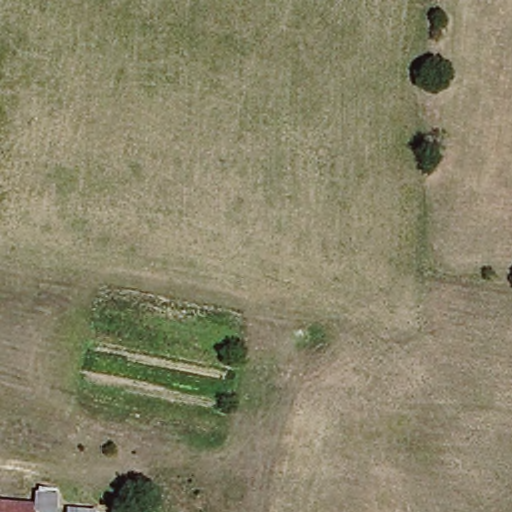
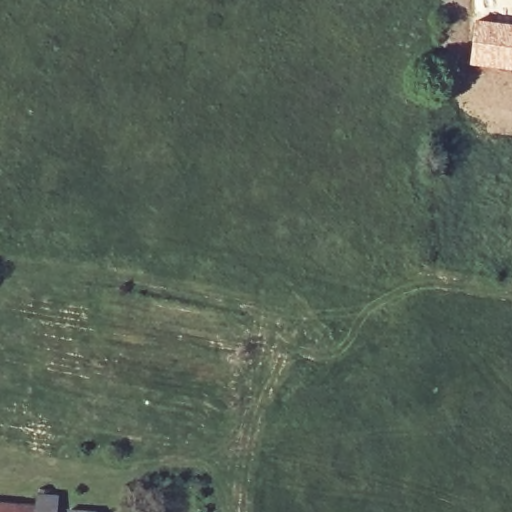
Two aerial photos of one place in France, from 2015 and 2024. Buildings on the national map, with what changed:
new [(474,19),(512,23),(512,69),(468,64),(474,19)]
unchanged [(31,501),(33,492),(58,495),(56,506),(55,512),(29,512),(31,501)]
unchanged [(70,507),(94,512),(69,512),(70,507)]
unchanged [(0,508),(29,512),(0,512),(0,508)]

